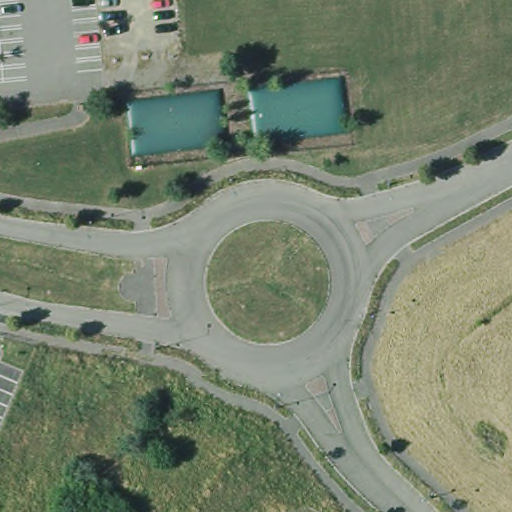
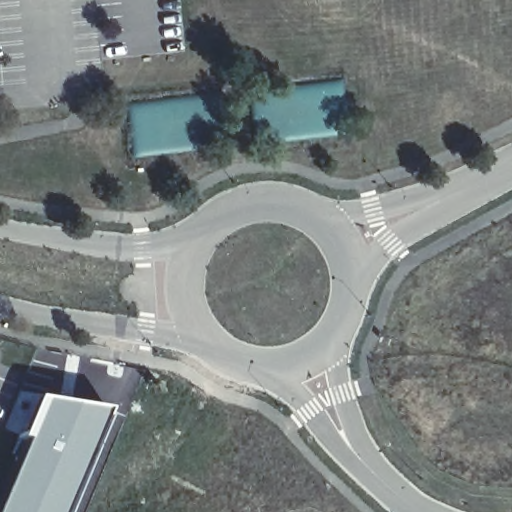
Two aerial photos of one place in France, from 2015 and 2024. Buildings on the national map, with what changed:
new [(35,346),(68,354),(62,376),(32,370),(30,374),(26,373),(35,346)]
new [(19,432),(35,389),(110,402),(85,453),(61,512),(0,512),(0,493),(25,435),(19,432)]

